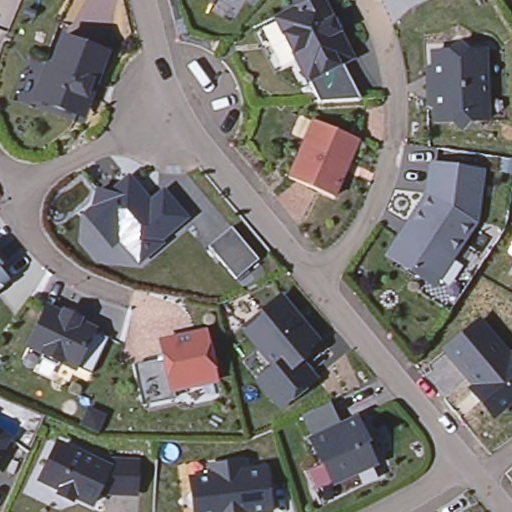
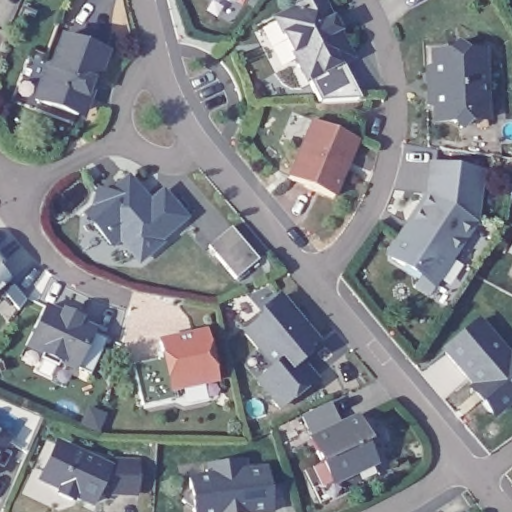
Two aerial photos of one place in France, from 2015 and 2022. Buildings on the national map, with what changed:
unchanged [(294,1),(293,0),(320,0),(349,54),(339,59),(306,76),(274,16),(296,5),(294,1)]
unchanged [(108,50),(96,82),(91,80),(54,66),(54,65),(66,34),(108,50)]
unchanged [(429,65),(437,61),(436,48),(454,47),(461,40),(469,47),(486,46),(489,116),(472,117),(464,124),(457,117),(439,118),(439,106),(431,102),(429,65)]
unchanged [(317,97),(306,76),(339,59),(358,95),(329,97),(317,97)]
unchanged [(54,66),(91,80),(86,93),(89,100),(85,110),(78,113),(37,97),(50,63),(54,65),(54,66)]
unchanged [(288,175),(312,117),(356,136),(333,194),(288,175)]
unchanged [(476,220),(454,254),(452,252),(435,278),(424,271),(423,274),(394,255),(394,247),(401,236),(409,233),(416,222),(412,219),(431,190),(435,161),(483,169),(476,220)]
unchanged [(99,187),(113,191),(131,176),(152,201),(166,190),(186,214),(158,237),(161,240),(141,256),(121,233),(113,240),(96,220),(88,210),(96,202),(95,202),(99,187)]
unchanged [(211,243),(233,224),(261,256),(238,276),(211,243)]
unchanged [(6,260),(1,264),(11,277),(0,287),(0,253),(6,260)]
unchanged [(283,403),(260,377),(277,363),(245,324),(281,294),(318,337),(308,344),(308,351),(301,357),(316,375),(283,403)]
unchanged [(30,342),(48,303),(67,312),(68,308),(83,315),(81,318),(95,325),(77,365),(30,342)]
unchanged [(443,346),(476,318),(507,354),(512,350),(512,351),(512,396),(496,409),(488,409),(481,401),(469,386),(474,382),(443,346)]
unchanged [(207,324),(218,372),(176,381),(173,382),(166,350),(163,333),(207,324)]
unchanged [(176,381),(177,389),(144,396),(136,357),(166,350),(173,382),(176,381)]
unchanged [(314,435),(303,412),(331,400),(342,422),(358,414),(369,437),(366,438),(376,460),(336,479),(325,458),(323,459),(312,436),(314,435)]
unchanged [(11,437),(0,454),(0,429),(11,437)]
unchanged [(60,493),(62,488),(45,480),(43,473),(46,466),(53,463),(62,443),(108,464),(109,456),(134,457),(133,490),(96,488),(89,501),(71,493),(69,497),(60,493)]
unchanged [(248,508),(223,511),(224,512),(198,512),(193,474),(213,472),(212,462),(247,458),(248,468),(268,465),(273,508),(248,511),(248,508)]
unchanged [(323,459),(325,458),(336,479),(376,460),(383,472),(339,493),(329,497),(313,464),(323,459)]

